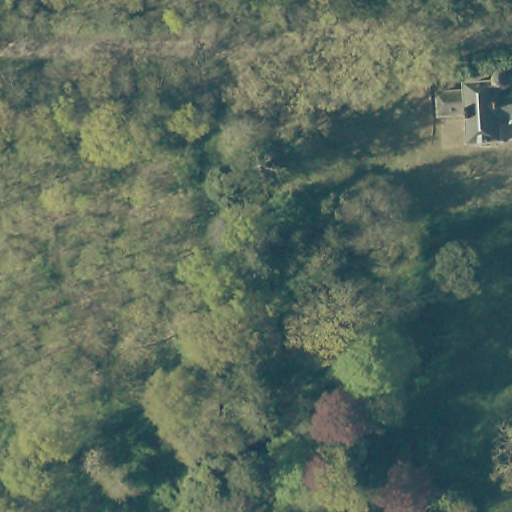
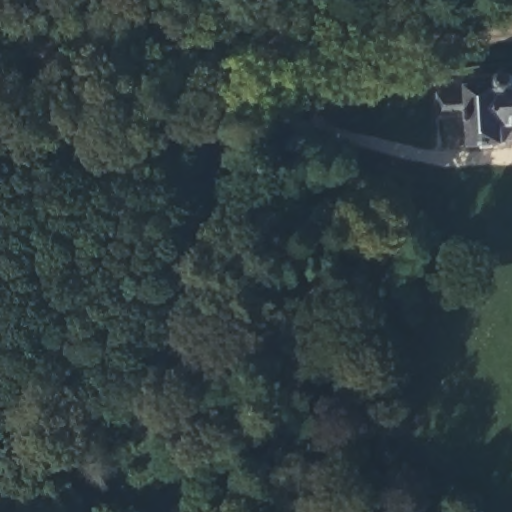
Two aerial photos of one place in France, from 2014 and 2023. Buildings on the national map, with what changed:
unchanged [(435,90),(447,89),(466,88),(466,82),(502,81),(502,75),(511,75),(512,79),(512,137),(502,137),(502,141),(468,143),(465,110),(450,111),(435,112),(435,90)]
unchanged [(351,109),(345,112),(320,115),(318,84),(374,80),(374,107),(351,109)]

